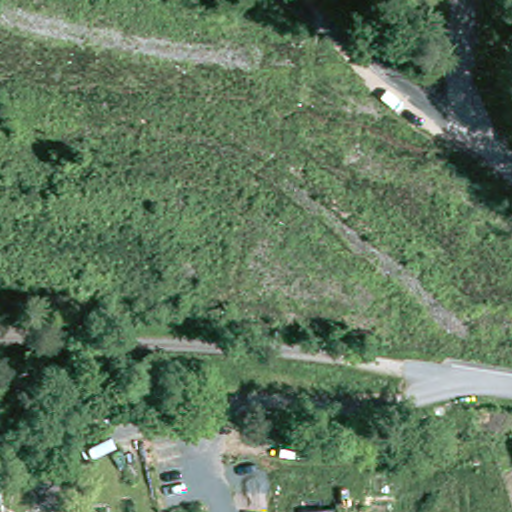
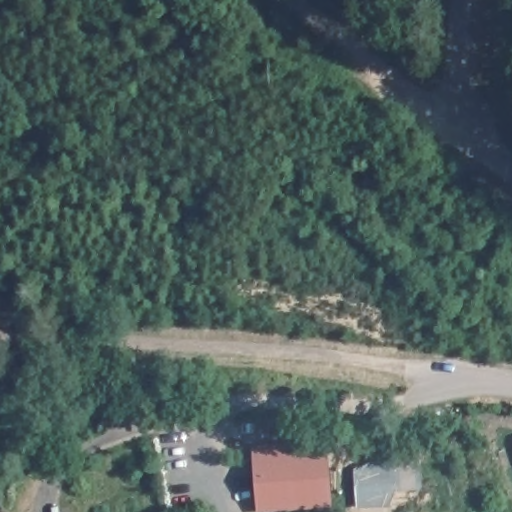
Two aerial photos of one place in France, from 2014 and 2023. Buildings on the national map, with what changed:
new [(263,506),(259,456),(258,445),(323,439),(324,450),(328,500),(263,506)]

